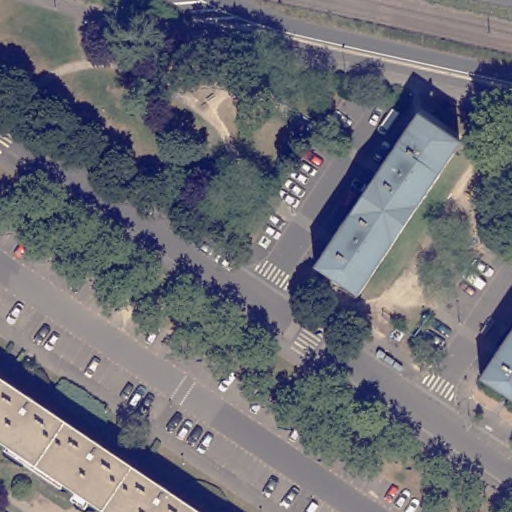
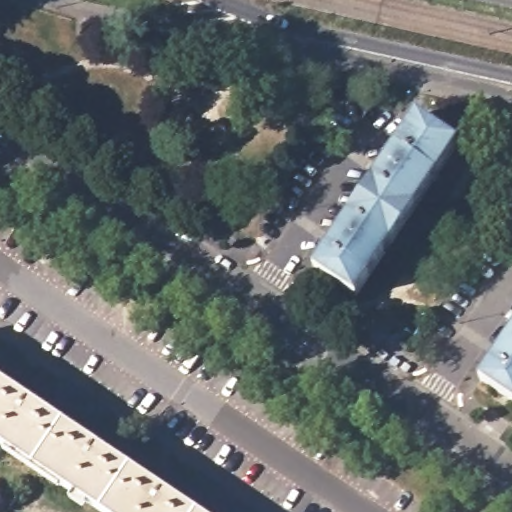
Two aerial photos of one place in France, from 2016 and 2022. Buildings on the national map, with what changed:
unchanged [(317,267),(325,255),(419,115),(460,143),(357,295),(317,267)]
unchanged [(482,378),(490,367),(512,334),(512,399),(482,378)]
unchanged [(101,512),(0,444),(0,380),(197,512),(101,512)]

